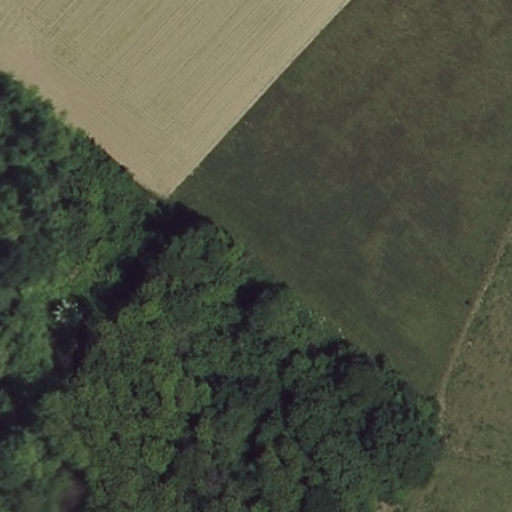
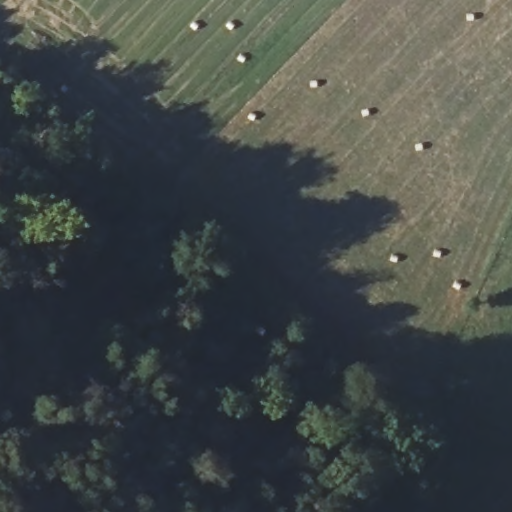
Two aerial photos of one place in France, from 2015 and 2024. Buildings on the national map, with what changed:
[]

